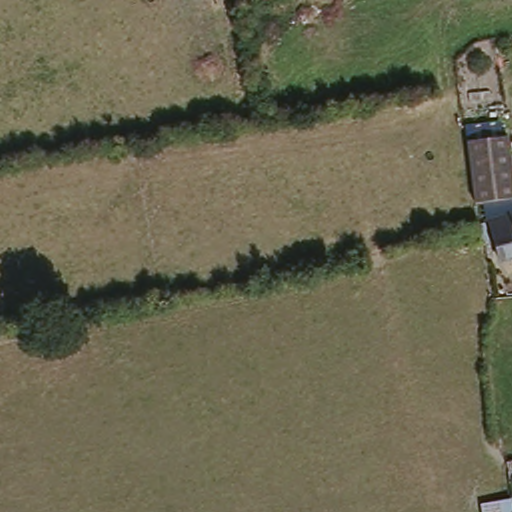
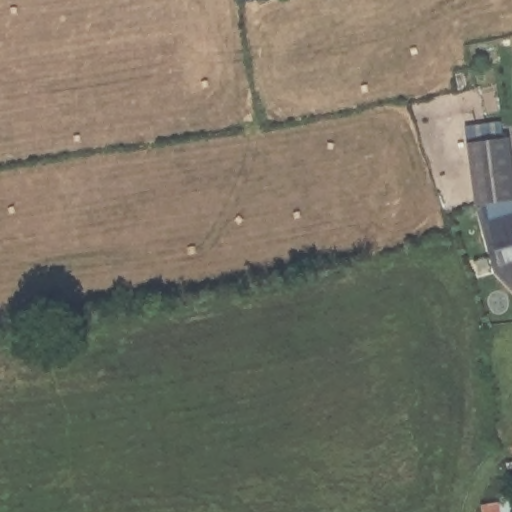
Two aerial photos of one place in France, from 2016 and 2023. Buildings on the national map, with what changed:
unchanged [(471,134),(512,133),(512,200),(478,204),(471,134)]
unchanged [(489,249),(484,228),(512,219),(512,261),(493,268),(489,249)]
unchanged [(475,501),(511,497),(512,510),(512,512),(476,512),(475,501)]

